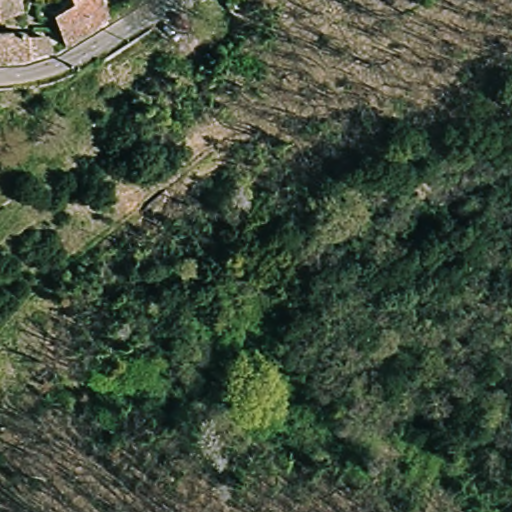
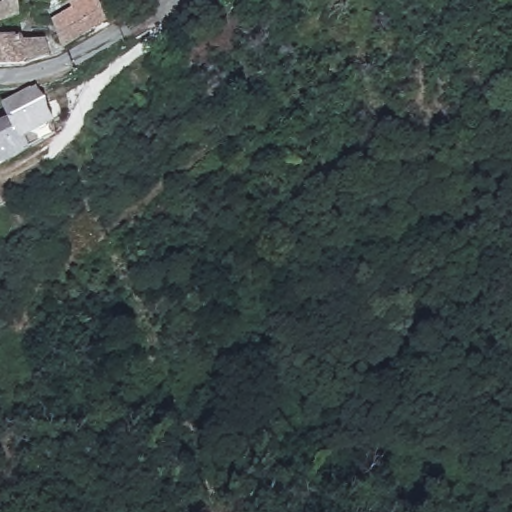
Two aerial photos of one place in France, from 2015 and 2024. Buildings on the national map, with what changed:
unchanged [(19,17),(0,23),(0,0),(17,0),(19,17)]
unchanged [(37,2),(37,0),(48,0),(37,2)]
unchanged [(60,45),(51,17),(77,0),(99,0),(104,15),(60,45)]
unchanged [(51,59),(29,67),(5,67),(0,67),(0,38),(7,38),(26,40),(26,42),(48,41),(51,59)]
new [(39,85),(48,100),(55,121),(60,134),(30,150),(24,138),(5,103),(39,85)]
new [(24,138),(30,150),(1,167),(0,166),(0,122),(12,116),(24,138)]

